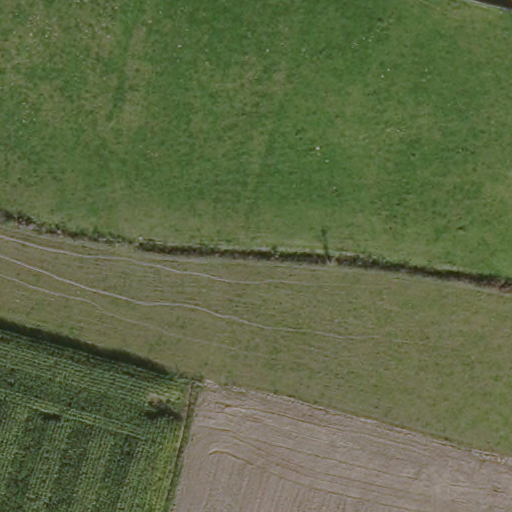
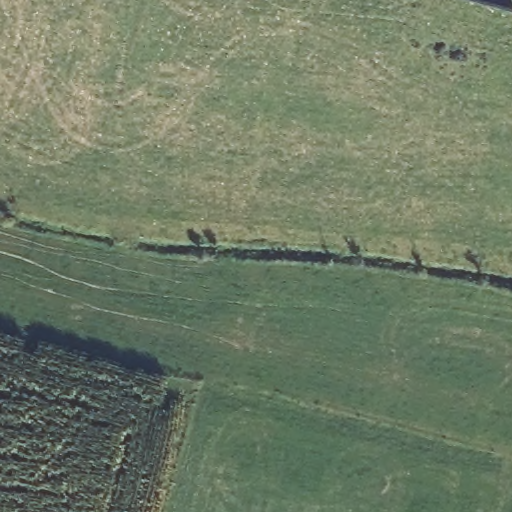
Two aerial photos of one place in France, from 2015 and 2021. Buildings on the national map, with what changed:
[]

